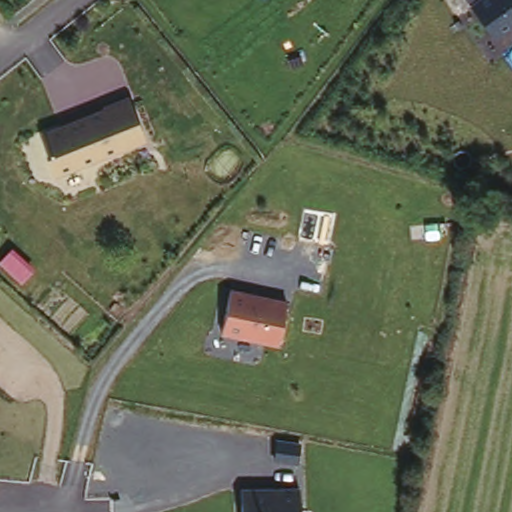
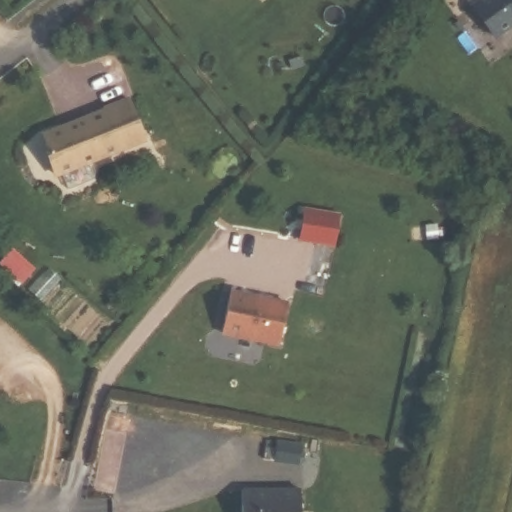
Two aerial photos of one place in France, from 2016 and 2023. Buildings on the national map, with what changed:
unchanged [(512,24),(510,24),(489,40),(464,0),(512,0),(512,24)]
unchanged [(40,134),(126,96),(144,144),(55,177),(40,134)]
new [(339,216),(335,252),(298,245),(305,209),(339,216)]
unchanged [(230,289),(287,299),(278,346),(221,333),(230,289)]
unchanged [(301,488),(300,512),(242,512),(242,487),(301,488)]

